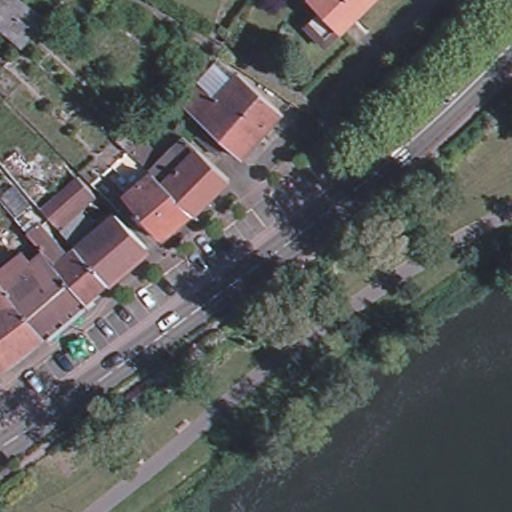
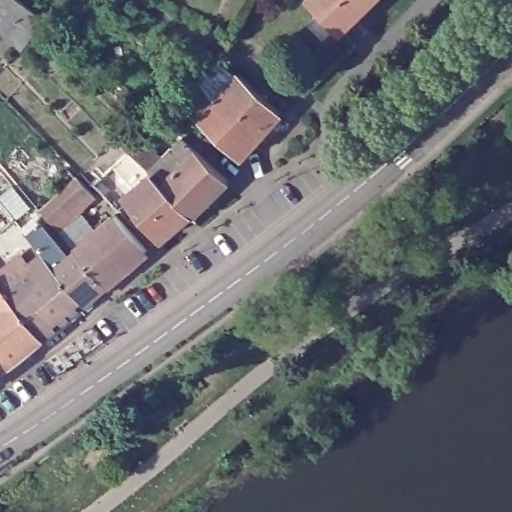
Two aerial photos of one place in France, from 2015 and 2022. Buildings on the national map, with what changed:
unchanged [(44,20),(16,46),(0,31),(0,0),(18,0),(25,6),(44,20)]
unchanged [(311,0),(383,0),(346,38),(310,1),(311,0)]
unchanged [(210,118),(202,111),(185,95),(202,76),(215,64),(223,71),(210,84),(220,93),(242,68),(287,108),(262,135),(246,152),(232,139),(223,148),(201,128),(210,118)]
unchanged [(197,211),(157,173),(155,170),(141,158),(132,166),(135,170),(121,182),(112,170),(135,151),(122,139),(128,133),(142,144),(148,139),(167,158),(178,146),(188,136),(201,149),(234,182),(201,214),(197,211)]
unchanged [(15,181),(20,177),(28,169),(43,186),(35,193),(30,198),(15,181)]
unchanged [(43,213),(31,199),(65,169),(77,183),(78,181),(95,199),(80,214),(98,234),(77,250),(43,213)]
unchanged [(166,239),(130,198),(157,173),(197,211),(166,239)]
unchanged [(117,217),(147,254),(107,288),(77,250),(98,234),(117,217)]
unchanged [(52,267),(40,252),(53,241),(70,257),(77,250),(107,288),(83,308),(51,269),(52,267)]
unchanged [(0,275),(22,258),(39,278),(51,269),(83,308),(43,342),(22,359),(0,329),(0,275)]
unchanged [(0,332),(20,361),(0,376),(0,332)]

